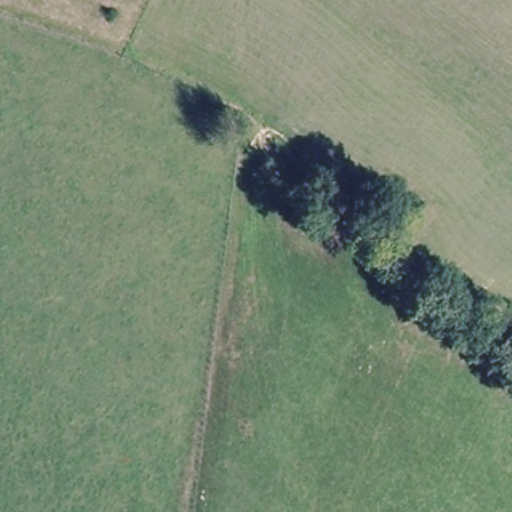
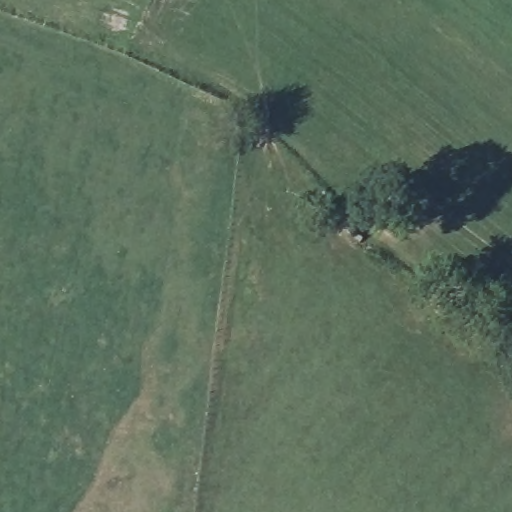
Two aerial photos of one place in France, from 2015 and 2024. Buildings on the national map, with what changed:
[]

